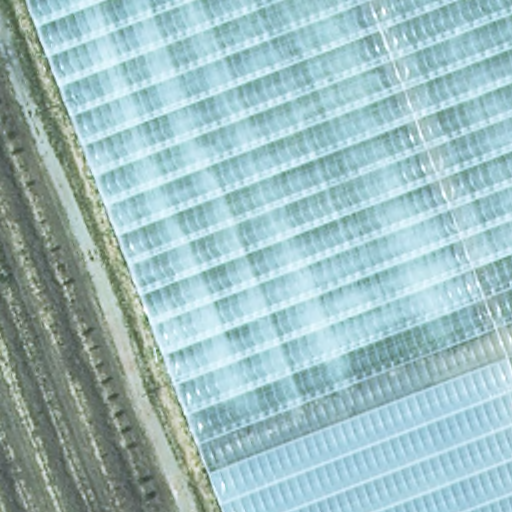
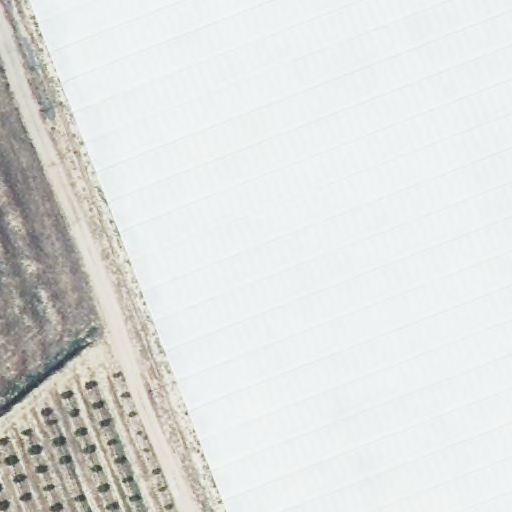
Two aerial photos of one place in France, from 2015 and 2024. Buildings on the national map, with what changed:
unchanged [(28,0),(512,0),(512,512),(225,512),(28,0)]

